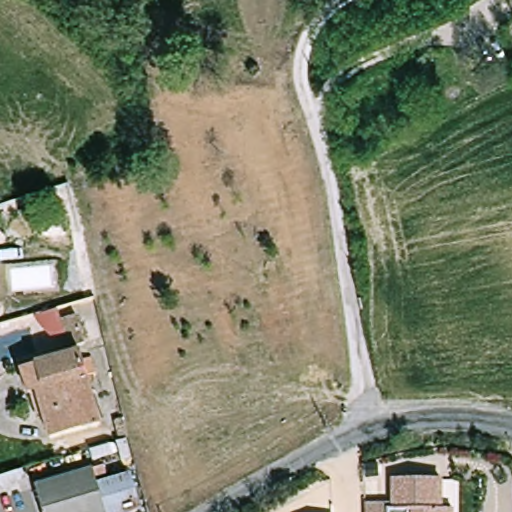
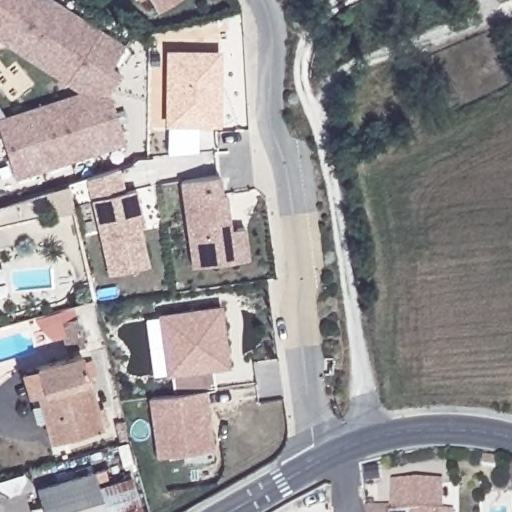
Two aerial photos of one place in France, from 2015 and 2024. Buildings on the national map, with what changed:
new [(125,44),(111,67),(120,72),(108,92),(125,145),(15,181),(0,133),(0,119),(79,92),(0,41),(0,0),(57,0),(125,44)]
new [(158,12),(150,0),(179,0),(158,12)]
new [(198,127),(197,152),(167,155),(168,127),(165,127),(166,49),(222,50),(221,127),(198,127)]
new [(120,173),(123,195),(134,192),(144,229),(139,230),(150,269),(109,280),(87,181),(120,173)]
new [(180,180),(220,174),(222,194),(226,193),(231,229),(245,227),(250,258),(191,267),(180,180)]
new [(222,305),(231,368),(213,371),(216,390),(206,391),(205,389),(173,393),(171,377),(166,378),(157,314),(222,305)]
unchanged [(87,345),(68,351),(59,323),(77,317),(87,345)]
unchanged [(93,398),(43,412),(37,391),(30,393),(23,370),(38,366),(81,354),(93,398)]
new [(148,397),(205,389),(213,450),(156,457),(148,397)]
unchanged [(101,426),(50,440),(43,412),(93,398),(101,426)]
unchanged [(46,512),(38,486),(98,470),(102,483),(134,477),(146,512),(46,512)]
unchanged [(395,507),(395,482),(445,482),(445,511),(456,511),(456,512),(369,512),(368,507),(395,507)]

